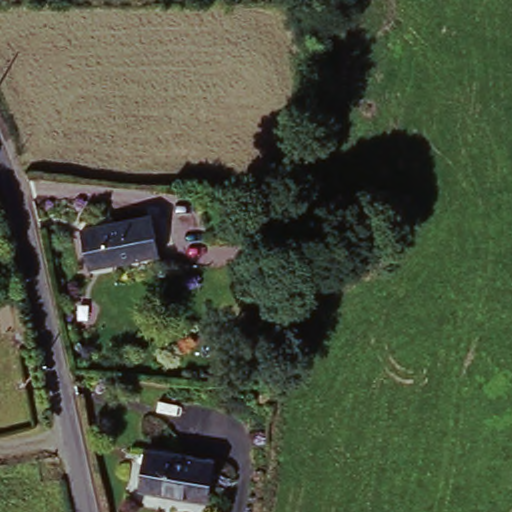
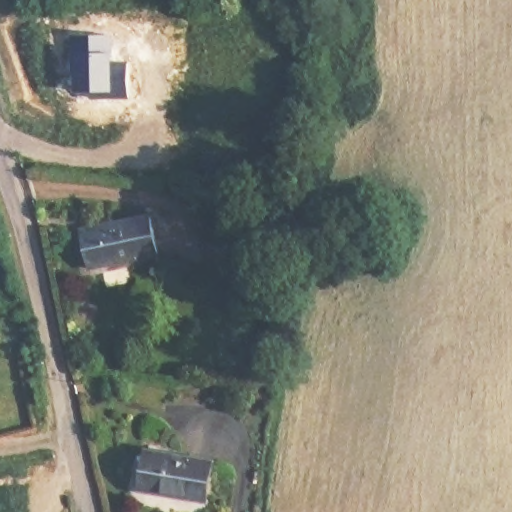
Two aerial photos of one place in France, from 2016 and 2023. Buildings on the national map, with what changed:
new [(110,35),(109,62),(127,63),(127,99),(93,100),(88,93),(70,93),(70,36),(110,35)]
unchanged [(149,214),(159,255),(93,271),(82,231),(149,214)]
unchanged [(216,462),(211,496),(147,489),(151,455),(216,462)]

